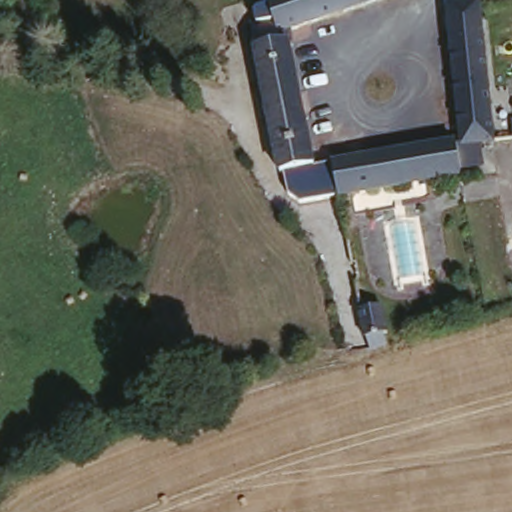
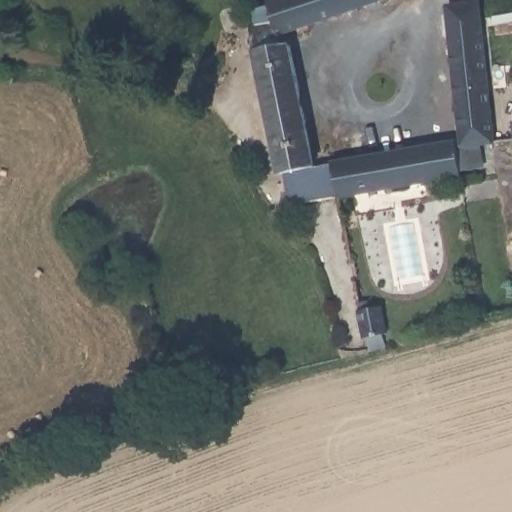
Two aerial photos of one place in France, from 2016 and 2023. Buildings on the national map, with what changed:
unchanged [(283,164),(252,16),(275,10),(272,0),(358,0),(295,22),(298,33),(293,34),(317,156),(283,164)]
unchanged [(483,166),(463,166),(458,136),(463,136),(450,0),(483,0),(495,132),(496,144),(481,146),(483,166)]
unchanged [(463,166),(342,186),(335,152),(457,131),(463,166)]
unchanged [(319,165),(337,160),(342,186),(343,196),(301,201),(288,191),(283,164),(317,156),(319,165)]
unchanged [(369,338),(365,339),(360,304),(370,302),(372,310),(383,308),(389,333),(385,335),(389,347),(373,351),(369,338)]

